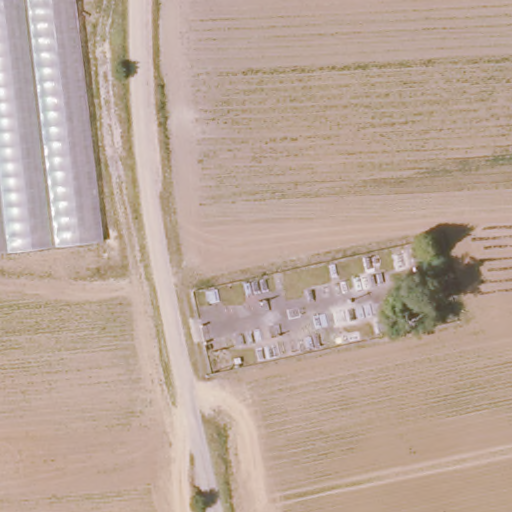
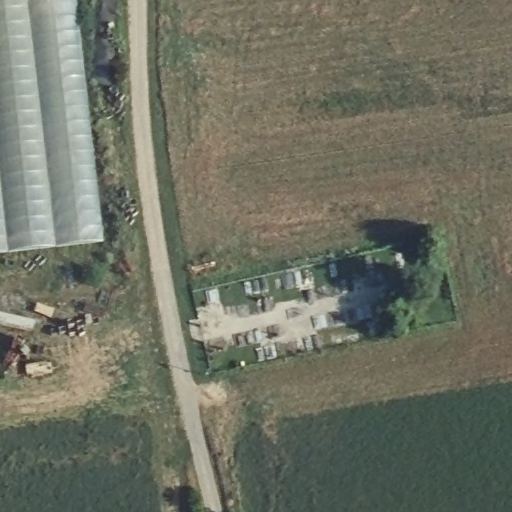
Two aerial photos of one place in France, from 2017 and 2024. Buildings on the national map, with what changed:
unchanged [(102,232),(0,251),(0,0),(69,0),(102,232)]

